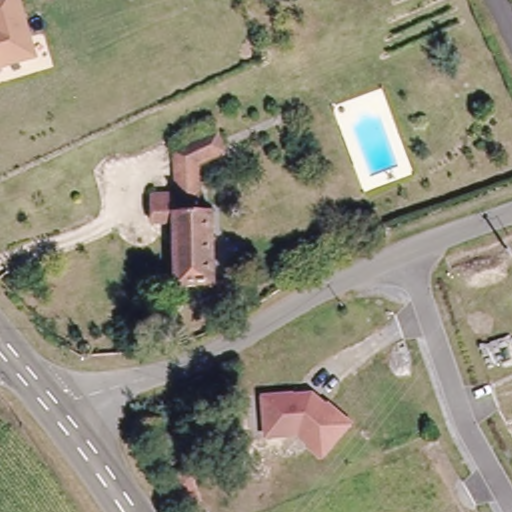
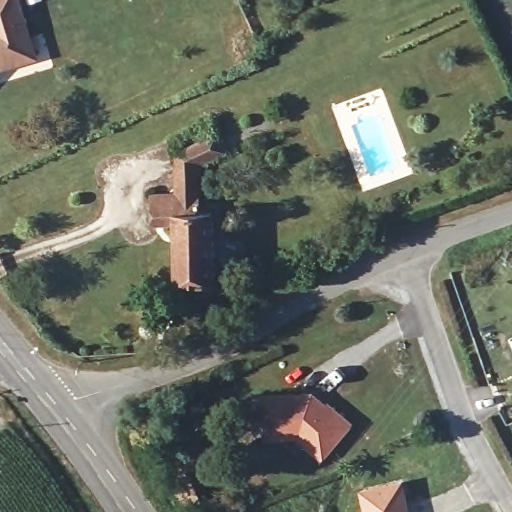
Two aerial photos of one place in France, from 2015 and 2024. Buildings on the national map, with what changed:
unchanged [(2,71),(0,74),(0,0),(22,0),(40,61),(2,71)]
unchanged [(226,291),(215,291),(205,292),(205,283),(176,285),(174,221),(151,221),(150,193),(175,192),(175,151),(215,132),(225,150),(197,163),(199,208),(212,208),(215,281),(226,282),(226,291)]
unchanged [(265,396),(317,396),(331,406),(331,405),(353,423),(325,455),(312,444),(314,443),(302,433),(271,437),(265,396)]
new [(405,479),(413,512),(363,512),(357,490),(405,479)]
unchanged [(178,492),(190,485),(204,512),(188,512),(178,492)]

